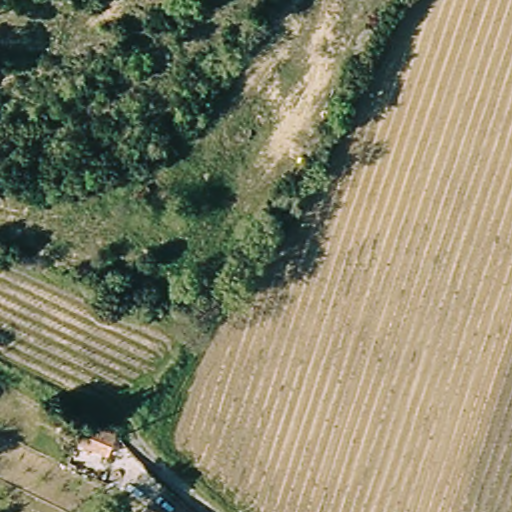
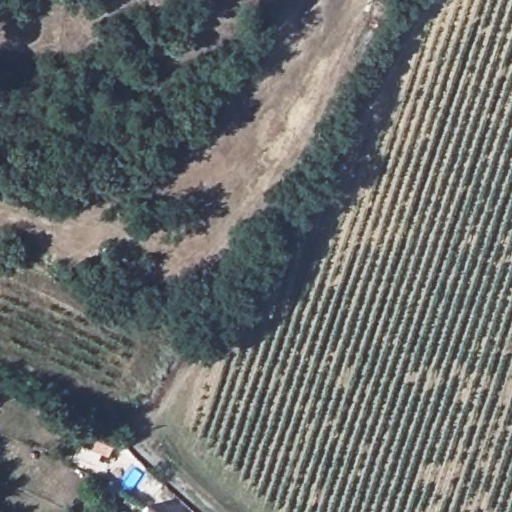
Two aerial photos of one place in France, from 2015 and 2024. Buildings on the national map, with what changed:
unchanged [(100,448),(82,442),(90,423),(105,427),(102,448),(100,448)]
unchanged [(102,448),(107,428),(117,438),(112,451),(102,448)]
unchanged [(147,504),(157,512),(142,512),(147,504)]

